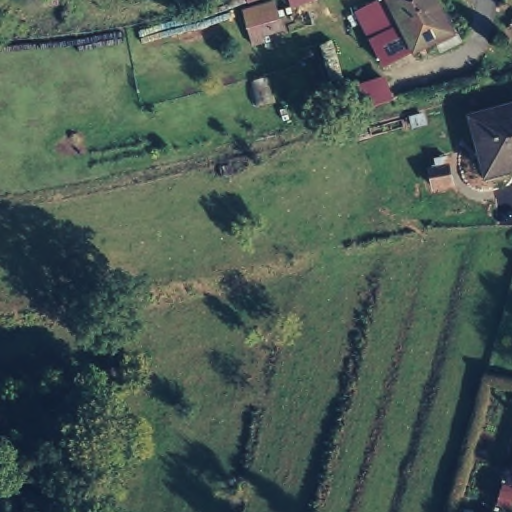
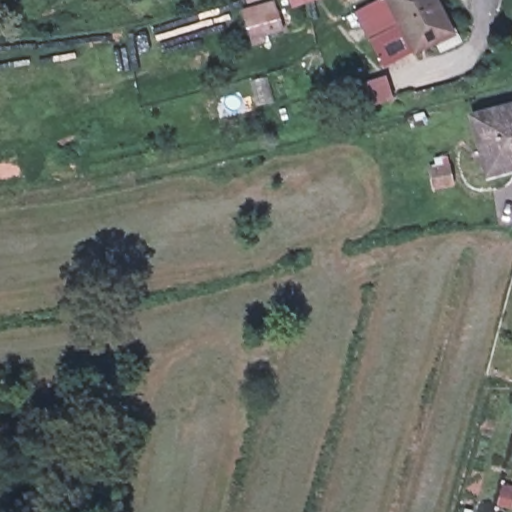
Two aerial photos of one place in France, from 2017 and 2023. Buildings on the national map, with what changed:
unchanged [(268,41),(250,46),(238,7),(248,4),(247,0),(280,0),(288,29),(267,36),(268,41)]
unchanged [(291,10),(288,0),(301,0),(302,6),(291,10)]
unchanged [(315,0),(302,6),(301,0),(315,0)]
unchanged [(373,0),(435,0),(450,35),(380,64),(356,8),(373,0)]
unchanged [(512,18),(512,38),(503,33),(512,18)]
unchanged [(253,111),(248,79),(269,75),(275,104),(253,111)]
unchanged [(359,115),(353,86),(386,78),(392,104),(359,115)]
unchanged [(472,122),(471,116),(512,106),(512,128),(509,113),(472,122)]
unchanged [(472,122),(509,113),(512,128),(512,167),(493,172),(485,174),(479,150),(472,122)]
unchanged [(223,177),(220,161),(232,159),(235,175),(223,177)]
unchanged [(458,185),(440,190),(437,175),(455,170),(458,185)]

